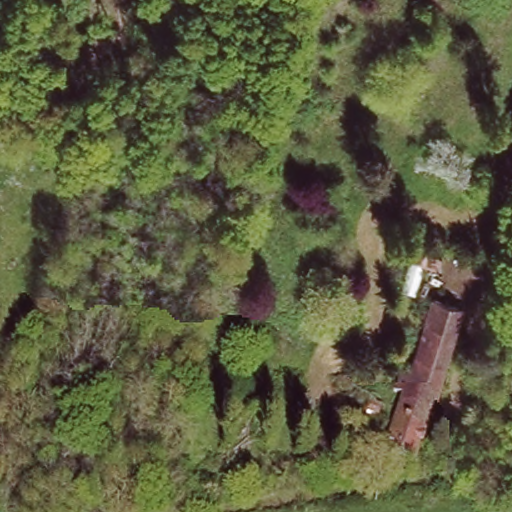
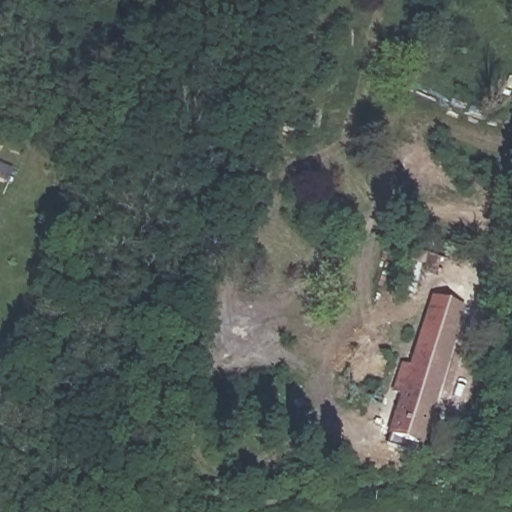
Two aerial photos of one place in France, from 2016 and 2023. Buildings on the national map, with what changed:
unchanged [(418,468),(375,455),(386,421),(397,424),(434,297),(465,306),(418,468)]

